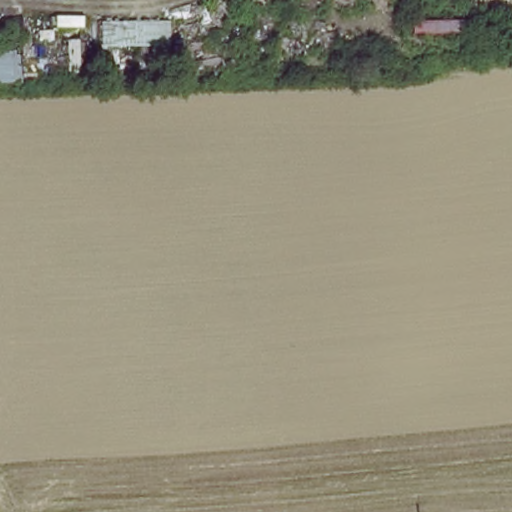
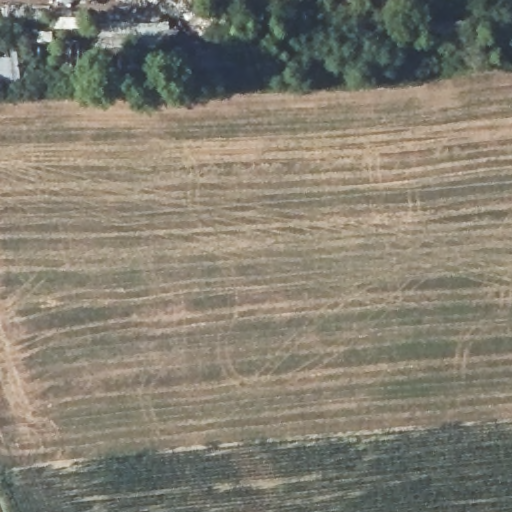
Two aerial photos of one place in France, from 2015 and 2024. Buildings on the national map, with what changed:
unchanged [(101,22),(164,22),(164,48),(101,46),(101,22)]
unchanged [(20,85),(0,86),(0,52),(17,52),(20,85)]

